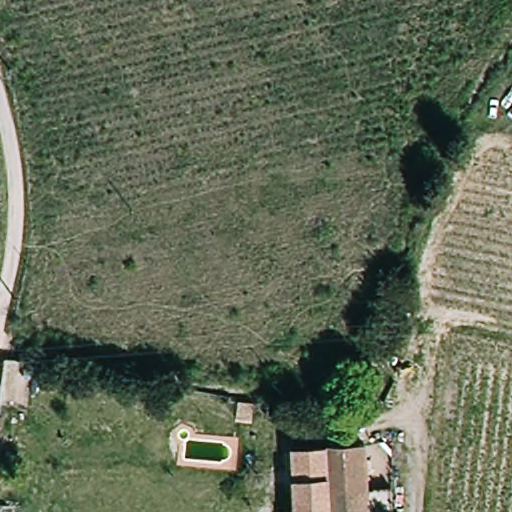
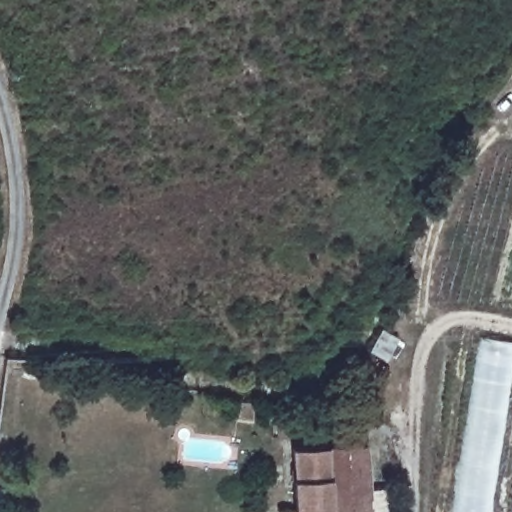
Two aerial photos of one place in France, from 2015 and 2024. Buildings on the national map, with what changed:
new [(478,336),(512,341),(512,373),(490,512),(450,512),(478,336)]
unchanged [(285,400),(283,412),(262,410),(262,397),(285,400)]
unchanged [(288,451),(360,446),(363,490),(389,487),(391,512),(293,512),(288,451)]

